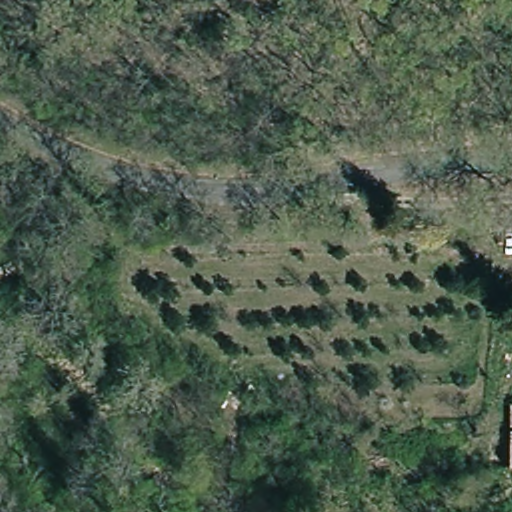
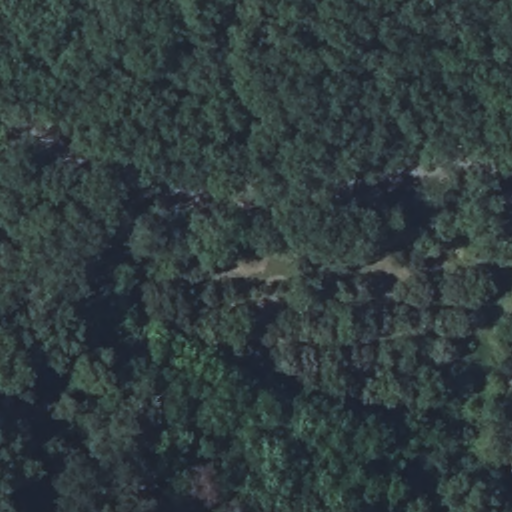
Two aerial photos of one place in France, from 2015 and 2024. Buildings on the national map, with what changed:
unchanged [(510,464),(510,402),(512,402),(512,464),(510,464)]

